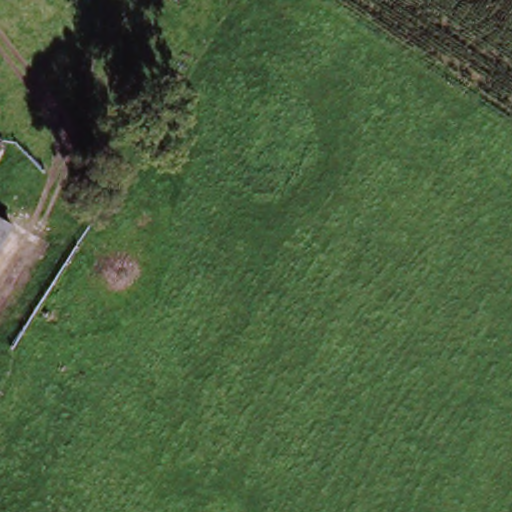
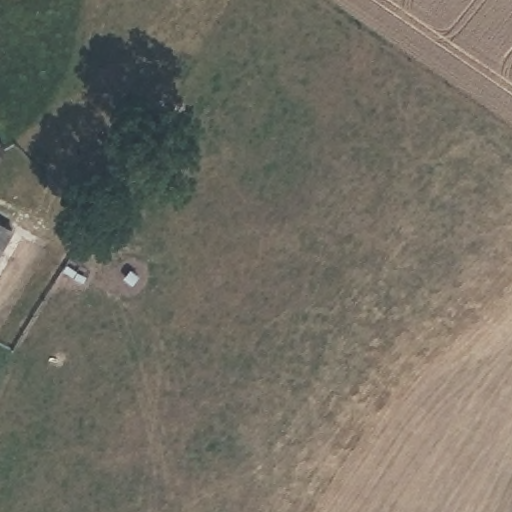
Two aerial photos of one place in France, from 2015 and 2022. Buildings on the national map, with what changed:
unchanged [(0,252),(0,222),(12,229),(0,252)]

